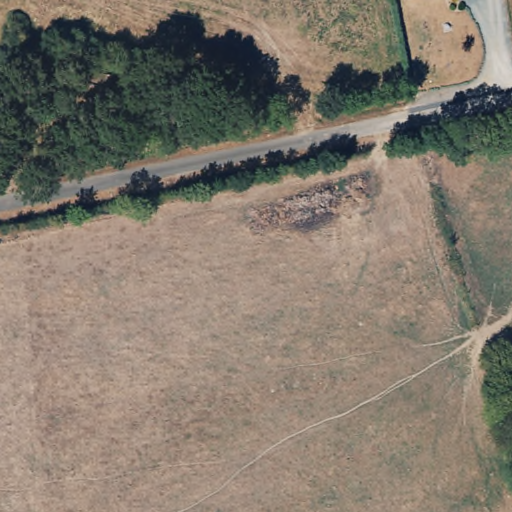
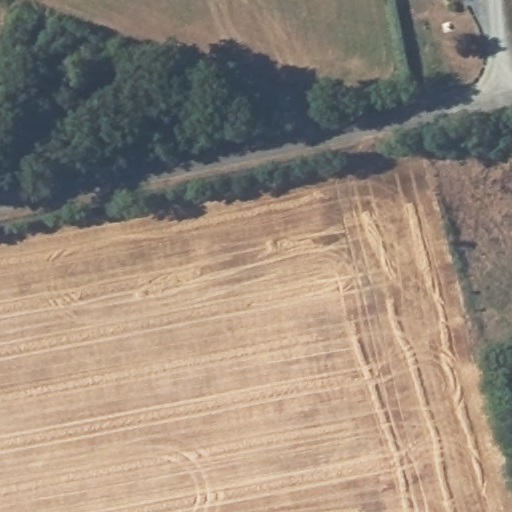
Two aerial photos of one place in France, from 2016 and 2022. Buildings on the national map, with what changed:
unchanged [(115,74),(113,106),(86,104),(88,72),(115,74)]

